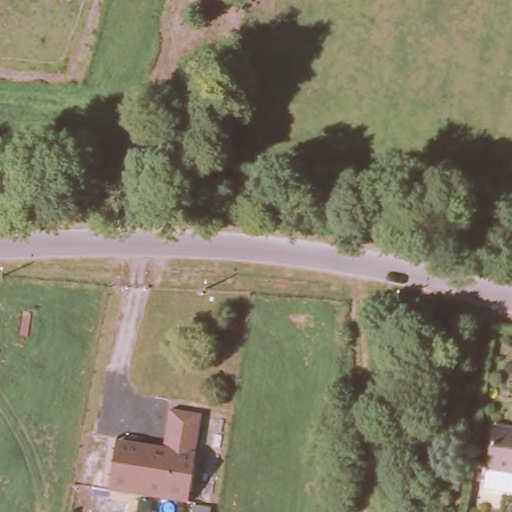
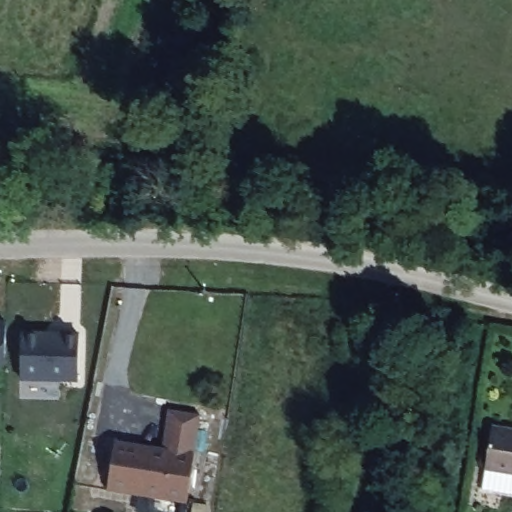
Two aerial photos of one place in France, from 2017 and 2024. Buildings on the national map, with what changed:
new [(0,365),(0,319),(5,319),(5,365),(0,365)]
new [(75,337),(73,382),(16,381),(17,336),(75,337)]
unchanged [(104,481),(110,443),(143,448),(153,444),(158,444),(164,407),(196,411),(183,497),(133,490),(103,486),(104,481)]
unchanged [(487,418),(512,422),(512,467),(480,462),(487,418)]

